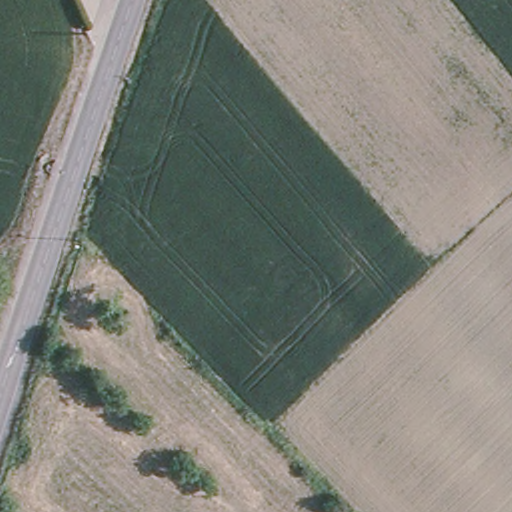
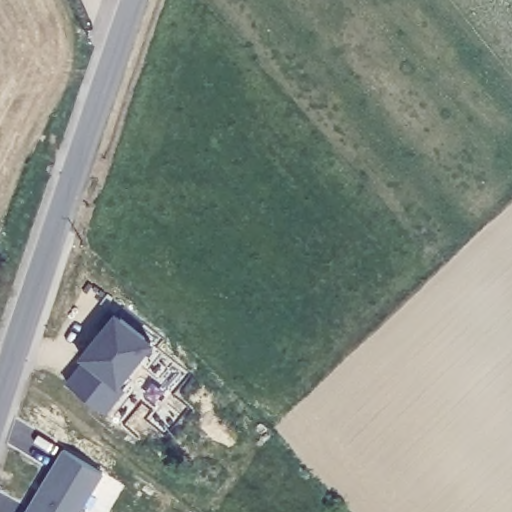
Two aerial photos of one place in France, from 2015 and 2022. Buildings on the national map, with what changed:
new [(154,343),(120,385),(125,391),(106,416),(65,383),(83,360),(77,357),(113,312),(154,343)]
new [(82,512),(24,512),(62,450),(105,474),(82,512)]

